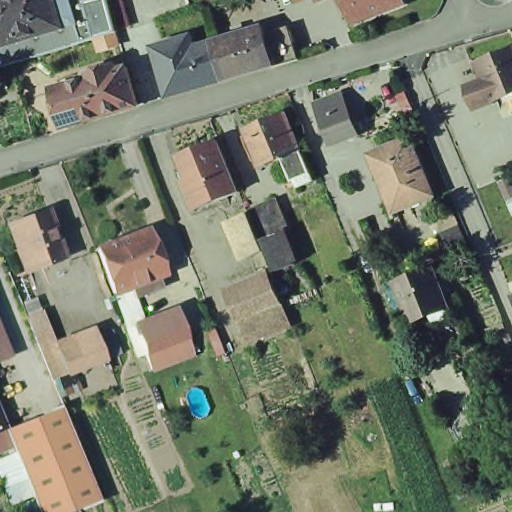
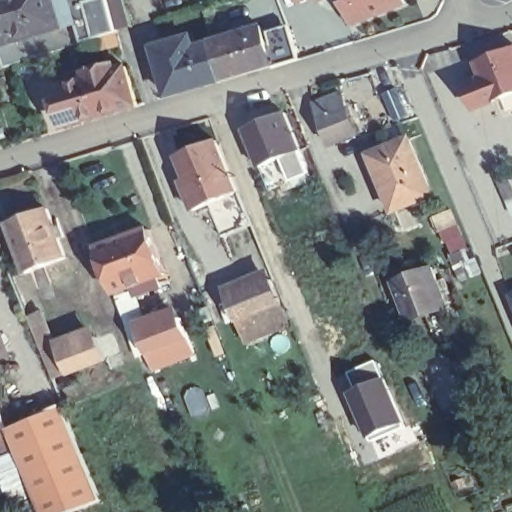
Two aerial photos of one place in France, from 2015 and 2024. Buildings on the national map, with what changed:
unchanged [(0,36),(0,0),(77,0),(84,23),(4,48),(0,36)]
unchanged [(89,42),(84,23),(77,0),(115,0),(123,31),(89,42)]
unchanged [(363,18),(356,0),(409,0),(363,18)]
unchanged [(213,35),(235,28),(234,21),(244,18),(245,25),(261,21),(265,33),(290,25),(299,53),(272,61),(272,59),(225,73),(213,35)]
unchanged [(10,67),(4,48),(84,23),(89,42),(65,49),(18,64),(10,67)]
unchanged [(171,90),(162,59),(157,44),(167,41),(193,33),(195,40),(213,35),(225,73),(171,90)]
unchanged [(506,94),(496,98),(475,106),(465,82),(487,74),(482,57),(512,46),(512,97),(509,99),(506,94)]
unchanged [(59,82),(72,78),(88,73),(87,67),(115,58),(117,64),(127,61),(138,99),(83,116),(70,120),(59,82)]
unchanged [(329,98),(342,92),(347,106),(359,134),(338,143),(330,146),(314,104),(322,101),(329,98)]
unchanged [(301,180),(299,174),(297,174),(287,152),(265,161),(250,124),(290,107),(315,168),(317,174),(301,180)]
unchanged [(375,150),(380,148),(414,133),(439,190),(400,206),(385,171),(375,150)]
unchanged [(223,134),(244,187),(198,203),(187,174),(192,172),(182,149),(223,134)]
unchanged [(275,262),(262,229),(250,198),(277,188),(289,218),(283,220),(296,253),(275,262)]
unchanged [(49,203),(67,252),(27,266),(9,217),(49,203)]
unchanged [(265,240),(247,246),(240,226),(230,229),(225,215),(250,205),(265,240)]
unchanged [(141,291),(137,281),(122,287),(104,242),(155,223),(172,268),(163,271),(167,281),(141,291)]
unchanged [(445,307),(414,320),(402,290),(400,282),(437,267),(452,305),(445,307)]
unchanged [(272,269),(282,291),(235,309),(227,287),(272,269)]
unchanged [(282,291),(290,311),(244,330),(235,309),(282,291)]
unchanged [(113,326),(122,348),(107,353),(69,369),(55,373),(30,309),(45,303),(60,346),(99,332),(113,326)]
unchanged [(156,362),(150,347),(144,350),(132,321),(140,318),(144,328),(187,312),(194,330),(200,345),(156,362)]
unchanged [(12,353),(0,358),(0,324),(12,353)]
new [(354,388),(346,372),(376,358),(405,422),(368,440),(346,392),(354,388)]
unchanged [(1,404),(9,424),(0,428),(0,401),(1,404)]
unchanged [(64,405),(102,498),(68,512),(45,512),(37,493),(17,443),(10,426),(64,405)]
unchanged [(17,443),(37,493),(15,502),(4,474),(0,475),(0,450),(17,443)]

